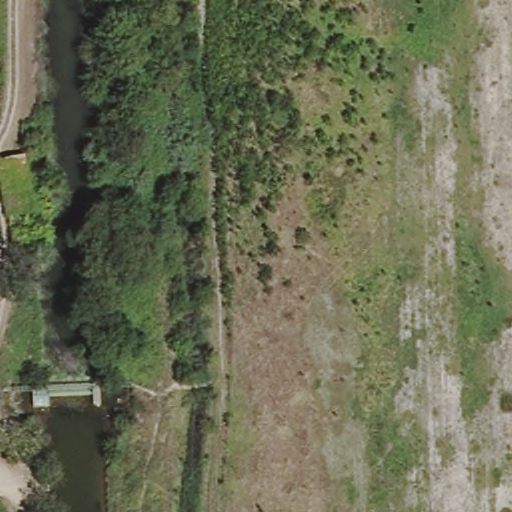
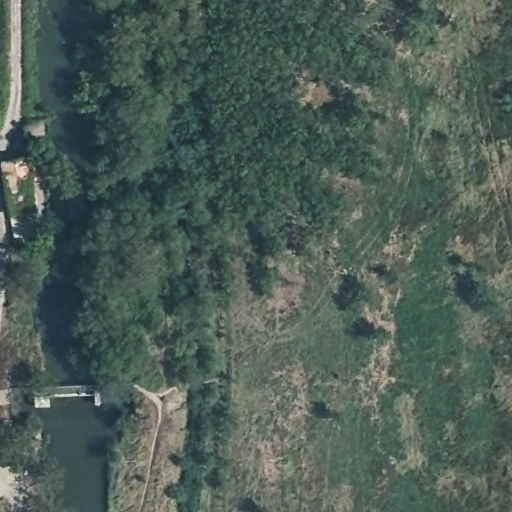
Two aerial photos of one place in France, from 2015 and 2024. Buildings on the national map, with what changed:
unchanged [(34,187),(8,192),(1,160),(29,156),(34,187)]

